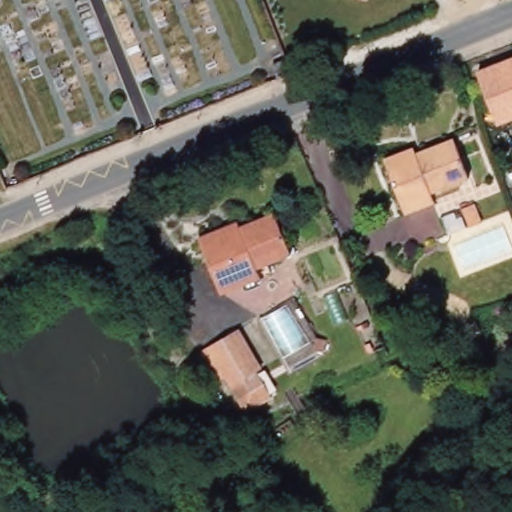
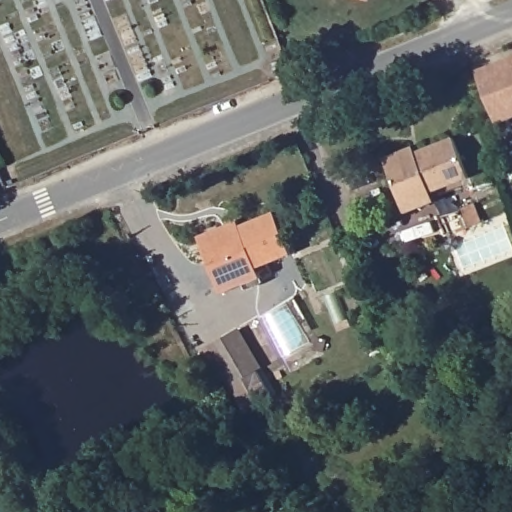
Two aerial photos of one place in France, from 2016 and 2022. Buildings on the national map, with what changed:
unchanged [(295,74),(281,79),(275,64),(288,58),(295,74)]
unchanged [(503,120),(484,69),(512,58),(512,117),(503,120)]
unchanged [(470,179),(432,192),(436,202),(406,213),(386,159),(415,148),(417,154),(455,139),(470,179)]
unchanged [(258,267),(262,276),(244,285),(222,293),(199,239),(237,223),(239,227),(275,214),(291,254),(258,267)]
unchanged [(246,411),(231,385),(210,346),(240,329),(262,368),(257,371),(272,397),(246,411)]

